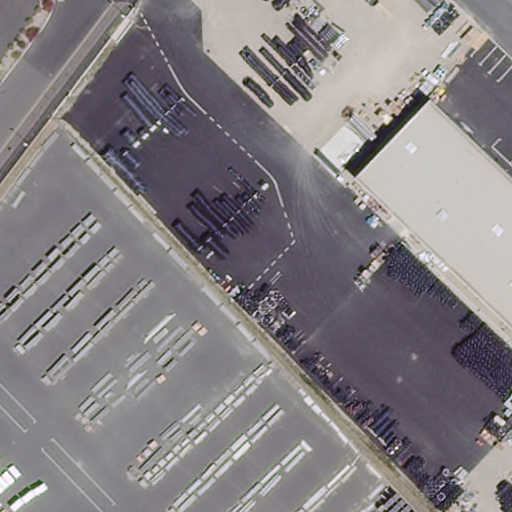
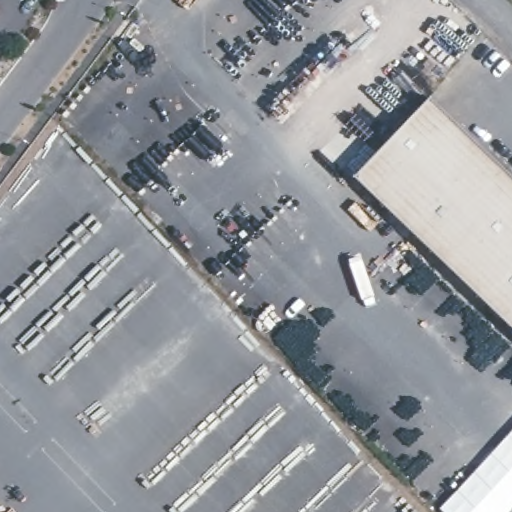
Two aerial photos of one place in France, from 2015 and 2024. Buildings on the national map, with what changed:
unchanged [(355,177),(431,99),(512,176),(512,326),(355,177)]
new [(511,512),(443,512),(440,510),(512,434),(512,511),(511,512)]

